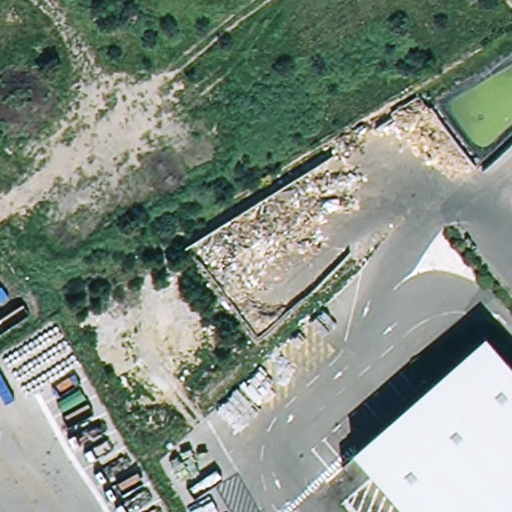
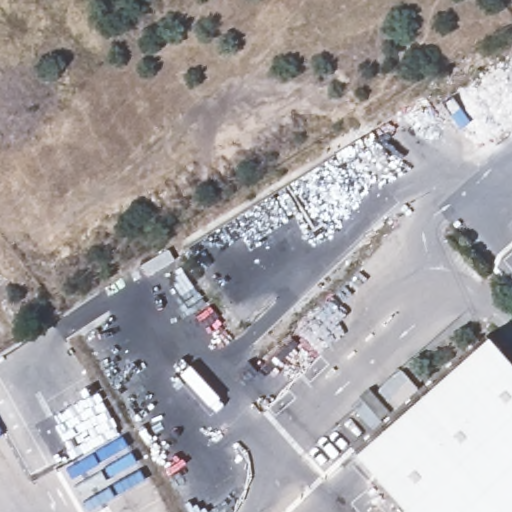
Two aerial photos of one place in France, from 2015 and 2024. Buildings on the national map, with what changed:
unchanged [(484,335),(512,366),(512,512),(405,512),(352,451),(484,335)]

